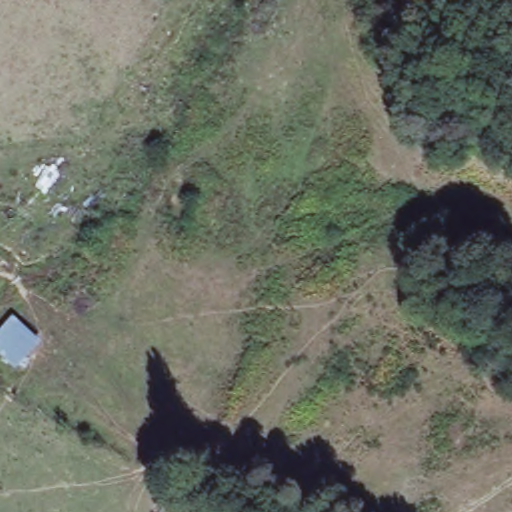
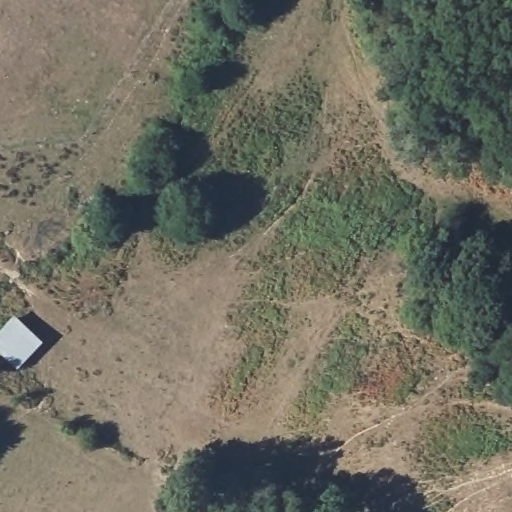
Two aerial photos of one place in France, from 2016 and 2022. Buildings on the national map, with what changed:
unchanged [(42,340),(17,369),(0,354),(0,329),(12,316),(42,340)]

